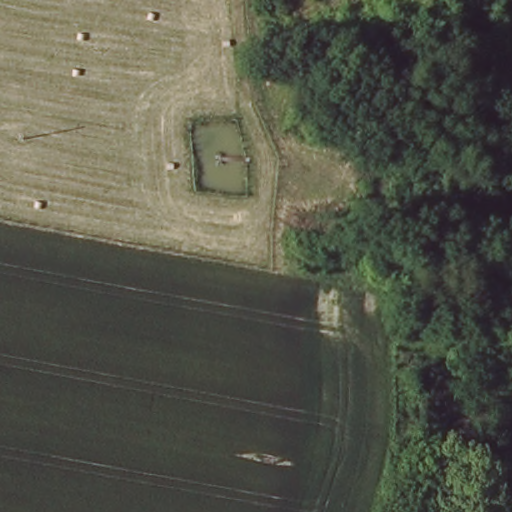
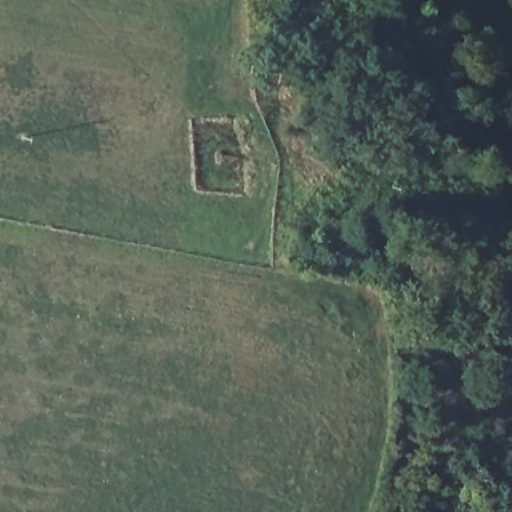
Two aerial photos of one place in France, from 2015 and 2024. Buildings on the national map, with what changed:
[]

